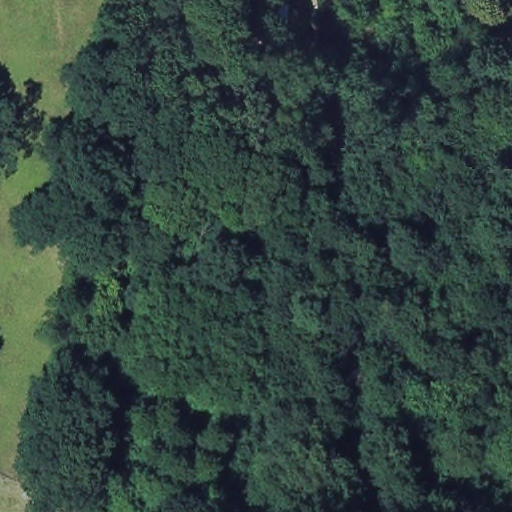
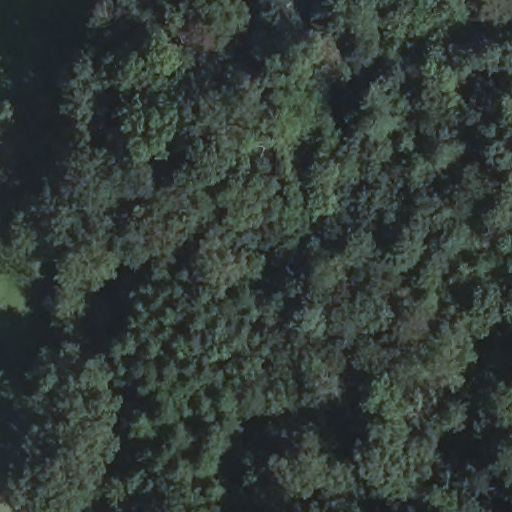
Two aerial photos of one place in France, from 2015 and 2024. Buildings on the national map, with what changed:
unchanged [(244,14),(245,0),(265,0),(265,16),(244,14)]

